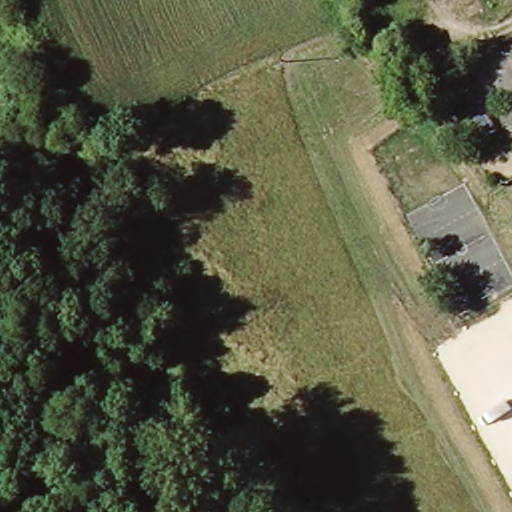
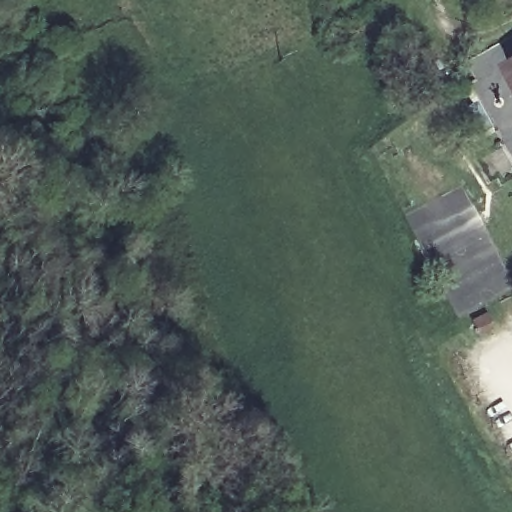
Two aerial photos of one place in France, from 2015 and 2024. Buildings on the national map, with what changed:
unchanged [(499,180),(489,186),(474,162),(484,156),(498,178),(512,170),(512,183),(505,188),(499,180)]

